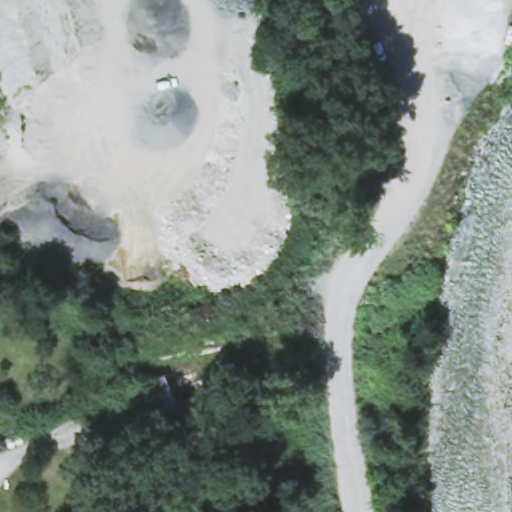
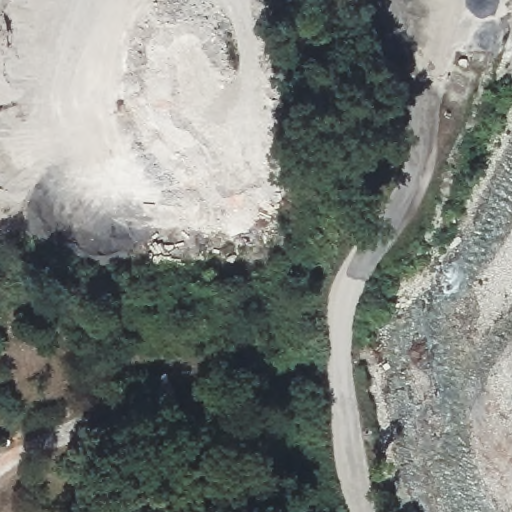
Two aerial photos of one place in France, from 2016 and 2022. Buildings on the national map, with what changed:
unchanged [(171,393),(180,410),(162,418),(155,402),(171,393)]

